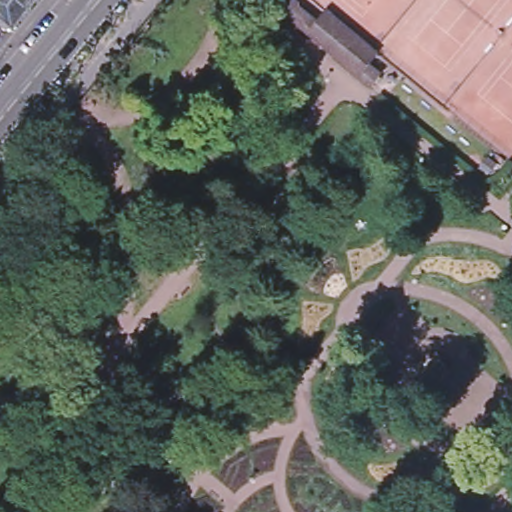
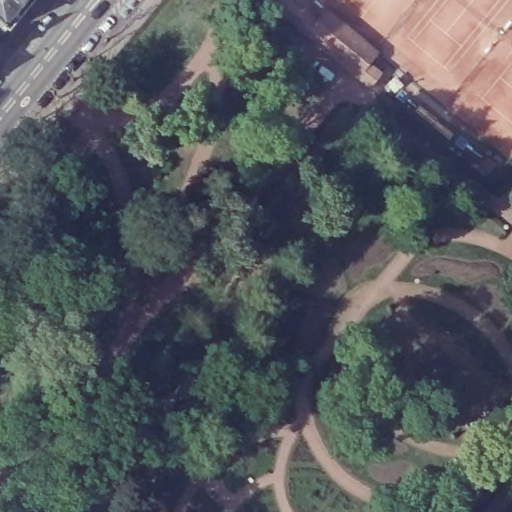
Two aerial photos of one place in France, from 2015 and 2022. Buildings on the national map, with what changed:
unchanged [(0,29),(0,0),(32,0),(5,33),(0,29)]
unchanged [(345,80),(335,71),(292,37),(255,7),(257,6),(249,0),(274,0),(302,23),(311,12),(364,56),(355,67),(368,77),(358,89),(345,79),(345,80)]

